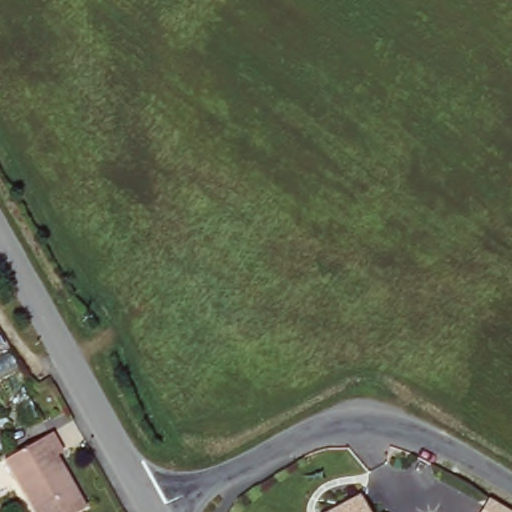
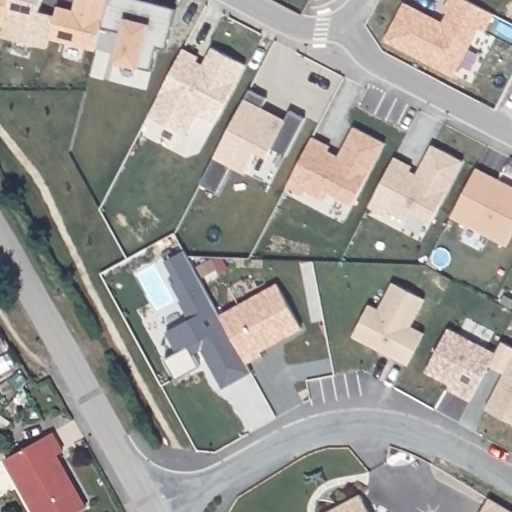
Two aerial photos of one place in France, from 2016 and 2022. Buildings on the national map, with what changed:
new [(179,7),(168,49),(159,46),(153,70),(116,60),(123,31),(103,26),(110,0),(150,0),(156,1),(179,7)]
new [(433,16),(431,22),(437,25),(445,22),(451,11),(446,9),(451,0),(473,0),(494,11),(485,29),(478,25),(455,72),(388,37),(406,2),(433,16)]
new [(200,55),(198,59),(205,63),(214,46),(247,63),(217,121),(200,112),(189,134),(150,115),(185,47),(200,55)]
new [(269,96),(264,105),(270,109),(287,117),(292,108),(307,116),(287,153),(273,146),(269,155),(257,150),(246,171),(233,164),(220,190),(202,182),(251,87),(269,96)]
new [(332,144),(330,148),(340,154),(355,125),(386,140),(355,202),(331,190),(326,199),(308,189),(306,193),(288,184),(314,135),(332,144)]
new [(414,164),(411,168),(418,172),(434,142),(465,159),(433,220),(413,210),(409,219),(390,209),(388,214),(370,205),(396,155),(414,164)]
new [(512,183),(512,235),(508,243),(452,214),(477,165),(512,183)]
new [(180,350),(169,330),(192,317),(182,299),(184,297),(175,280),(179,278),(168,258),(187,248),(255,370),(225,385),(204,347),(196,351),(203,365),(179,377),(167,356),(180,350)]
new [(354,334),(371,302),(380,307),(394,280),(426,297),(412,323),(426,330),(409,363),(395,355),(375,345),(354,334)]
new [(450,326),(497,350),(472,398),(456,390),(458,385),(427,370),(450,326)]
unchanged [(2,346),(0,347),(0,341),(2,346)]
new [(512,419),(487,406),(512,360),(512,419)]
unchanged [(91,511),(90,512),(36,512),(10,463),(56,437),(67,456),(62,460),(91,511)]
unchanged [(363,495),(373,512),(331,512),(363,495)]
new [(512,510),(512,512),(480,512),(488,496),(512,510)]

